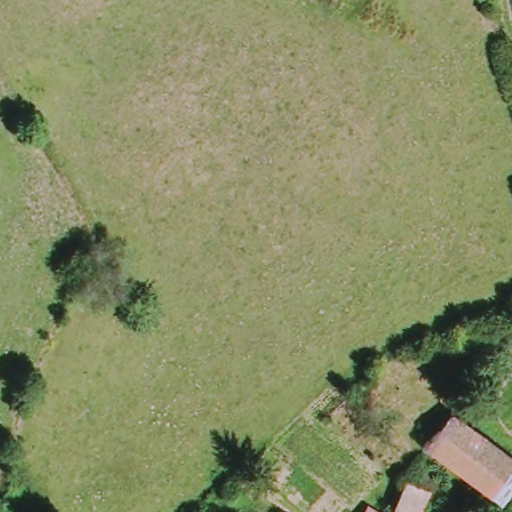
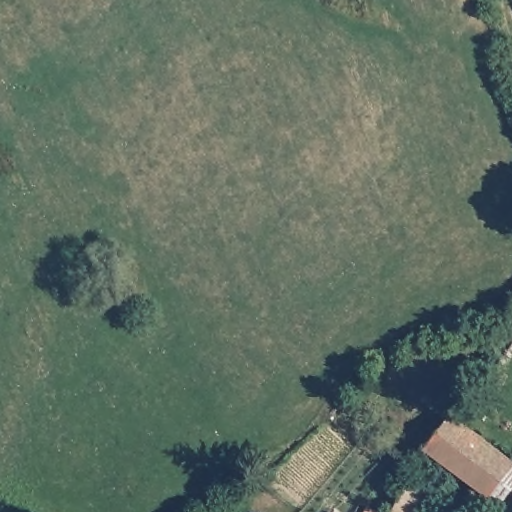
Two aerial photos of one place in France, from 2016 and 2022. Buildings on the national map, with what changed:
unchanged [(504,501),(479,481),(439,449),(462,418),(512,456),(512,488),(504,501)]
unchanged [(412,482),(435,492),(425,512),(397,512),(399,509),(412,482)]
unchanged [(382,512),(368,512),(371,505),(382,512)]

